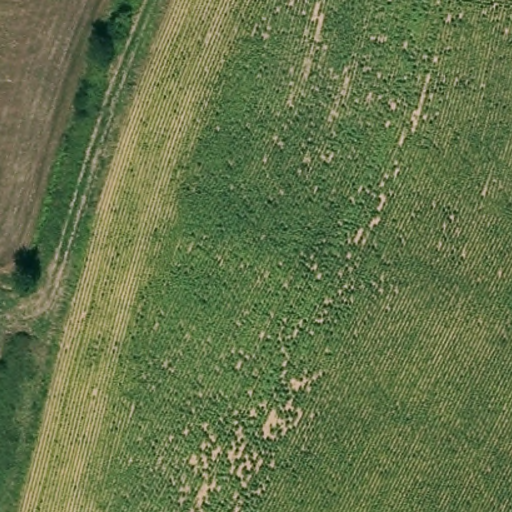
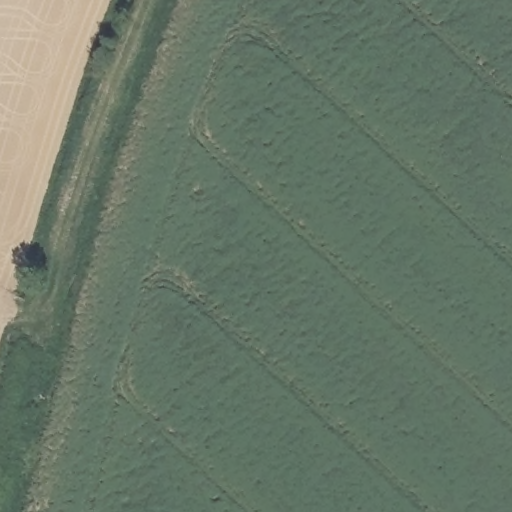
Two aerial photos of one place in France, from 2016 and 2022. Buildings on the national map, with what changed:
[]

